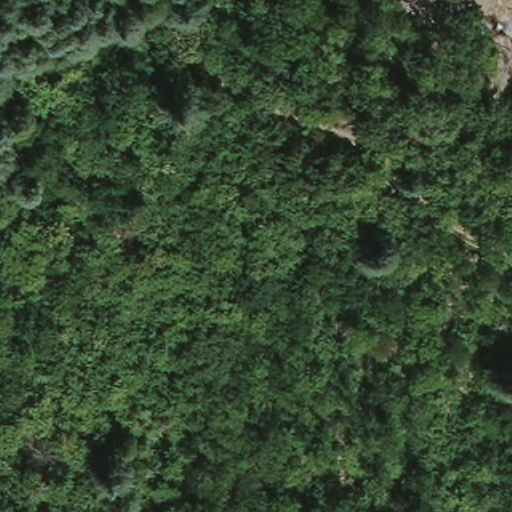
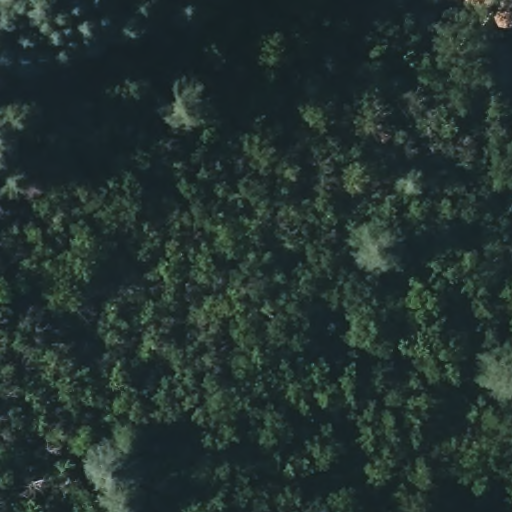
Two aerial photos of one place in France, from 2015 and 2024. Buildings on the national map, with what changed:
unchanged [(410,174),(394,158),(413,133),(430,149),(410,174)]

